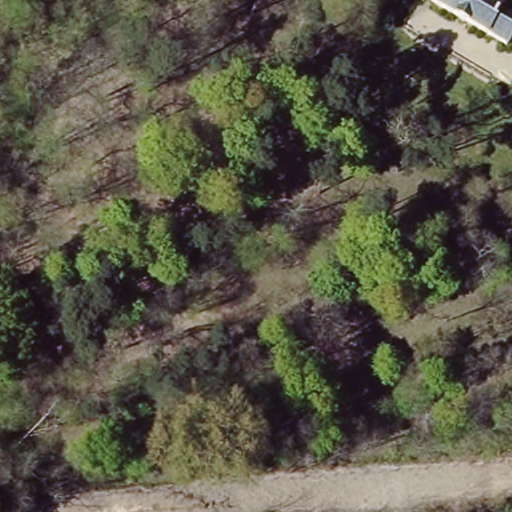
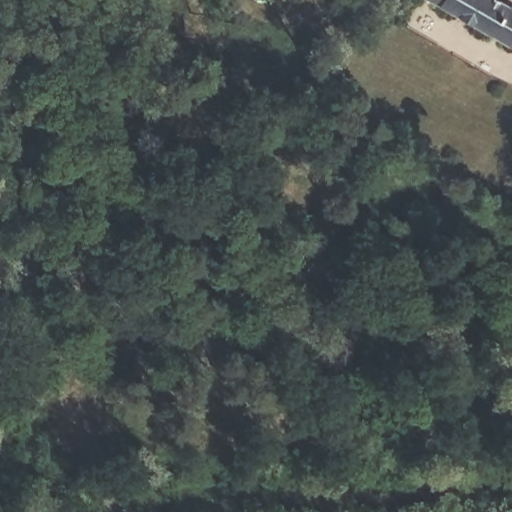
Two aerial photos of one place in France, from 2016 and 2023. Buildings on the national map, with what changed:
unchanged [(512,16),(512,35),(505,47),(424,0),(486,0),(512,16)]

